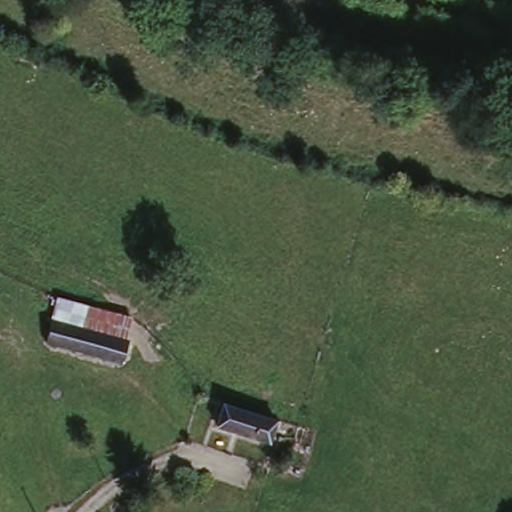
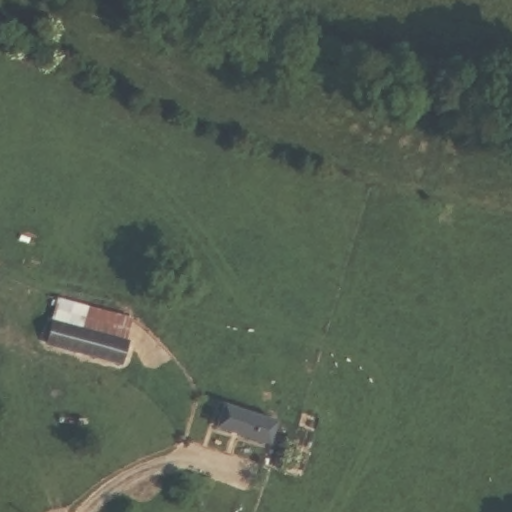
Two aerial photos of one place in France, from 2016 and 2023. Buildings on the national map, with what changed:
unchanged [(128,337),(131,338),(126,364),(43,344),(56,299),(133,320),(128,337)]
unchanged [(220,429),(228,405),(277,420),(269,444),(220,429)]

